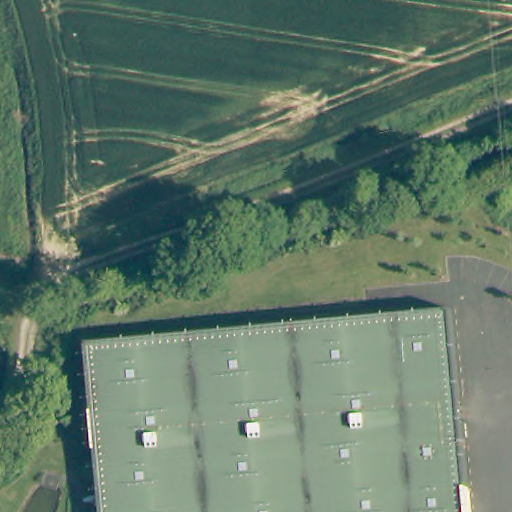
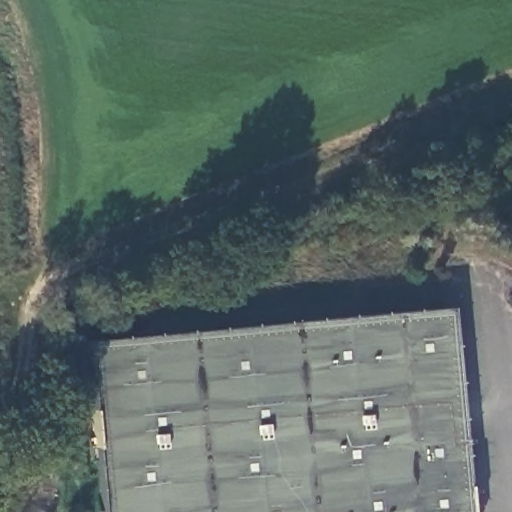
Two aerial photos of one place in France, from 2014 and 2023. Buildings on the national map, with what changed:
unchanged [(85,344),(453,310),(471,512),(100,512),(85,344)]

